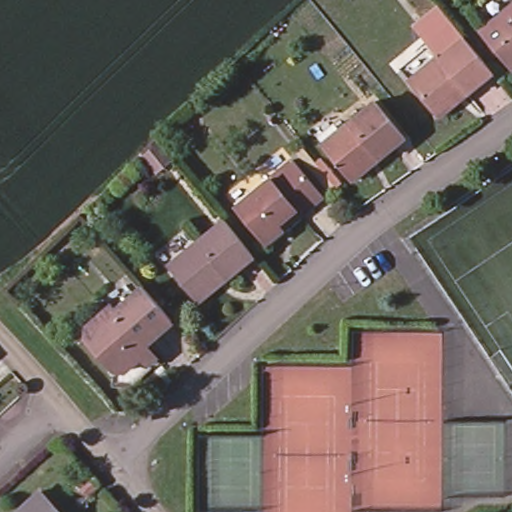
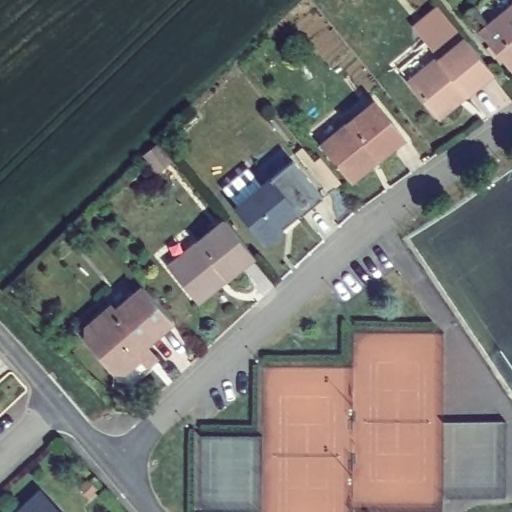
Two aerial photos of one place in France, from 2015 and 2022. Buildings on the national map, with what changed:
unchanged [(477,27),(509,0),(512,0),(512,66),(510,67),(477,27)]
unchanged [(495,76),(466,100),(462,95),(435,116),(406,81),(437,55),(440,59),(465,39),(495,76)]
unchanged [(318,139),(371,96),(404,136),(351,180),(318,139)]
unchanged [(337,186),(330,191),(297,151),(305,146),(337,186)]
unchanged [(233,201),(287,157),(317,194),(262,238),(233,201)]
unchanged [(195,299),(165,263),(222,217),(251,253),(195,299)]
unchanged [(145,365),(137,356),(123,370),(110,368),(82,336),(82,325),(108,303),(112,308),(139,284),(168,318),(140,343),(152,358),(145,365)]
unchanged [(28,502),(23,496),(43,478),(73,512),(17,512),(28,502)]

